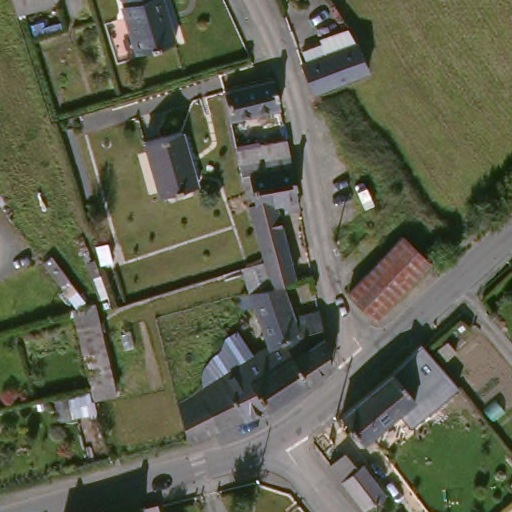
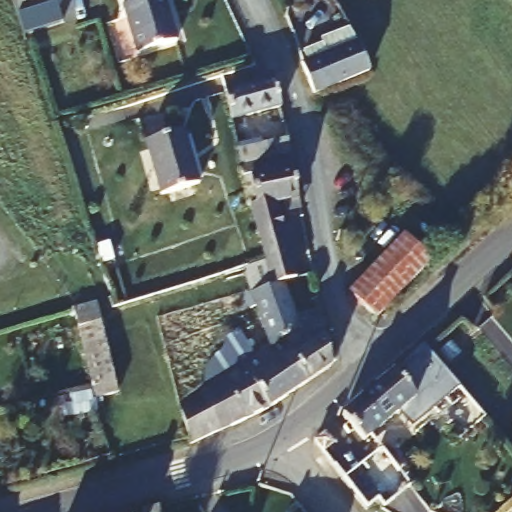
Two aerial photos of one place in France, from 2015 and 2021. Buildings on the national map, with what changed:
unchanged [(20,10),(17,0),(50,0),(20,10)]
unchanged [(185,39),(147,48),(135,4),(142,1),(142,0),(176,0),(185,39)]
unchanged [(315,61),(311,50),(330,43),(328,39),(361,27),(366,42),(377,71),(320,92),(309,63),(315,61)]
unchanged [(236,113),(229,86),(282,71),(289,101),(236,113)]
unchanged [(201,179),(164,185),(152,135),(190,126),(201,179)]
unchanged [(270,253),(257,208),(247,171),(240,147),(287,135),(291,148),(297,204),(278,207),(296,272),(288,273),(283,275),(252,283),(246,260),(270,253)]
unchanged [(436,257),(407,287),(382,308),(355,283),(407,231),(436,257)]
unchanged [(302,315),(331,305),(338,356),(327,364),(254,416),(208,432),(201,434),(189,390),(202,386),(210,376),(217,367),(219,348),(244,325),(253,346),(267,337),(252,283),(283,275),(288,273),(302,315)]
unchanged [(103,393),(82,304),(105,296),(124,389),(103,393)]
unchanged [(442,378),(367,438),(338,414),(393,367),(429,342),(456,369),(442,378)]
unchanged [(352,479),(335,459),(352,447),(369,465),(377,459),(380,465),(399,486),(376,509),(352,479)]
unchanged [(154,502),(156,512),(148,512),(145,505),(154,502)]
unchanged [(131,512),(115,512),(126,509),(130,507),(131,511),(131,512)]

